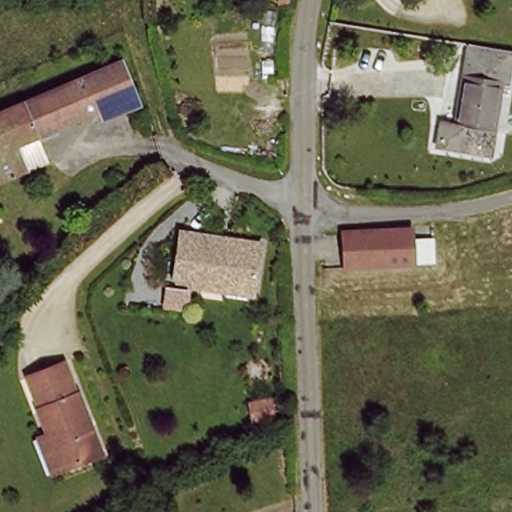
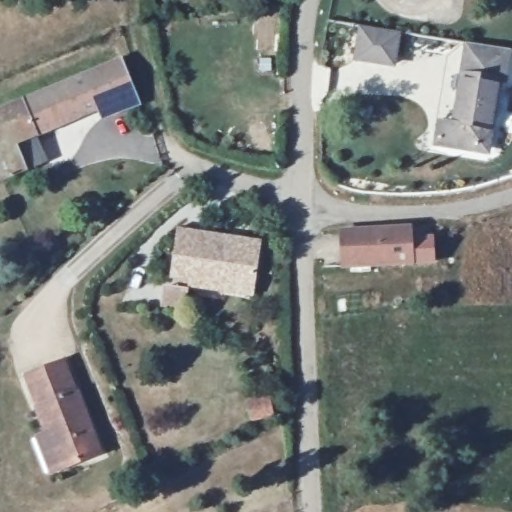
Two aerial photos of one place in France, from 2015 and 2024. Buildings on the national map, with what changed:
new [(357,24),(402,32),(396,69),(350,61),(357,24)]
unchanged [(120,60),(142,118),(115,129),(103,104),(8,144),(17,172),(0,178),(0,110),(20,102),(22,101),(120,60)]
new [(313,63),(331,67),(326,107),(311,109),(313,63)]
unchanged [(491,127),(452,120),(463,70),(501,77),(491,127)]
unchanged [(343,226),(406,221),(409,258),(344,263),(343,226)]
unchanged [(196,295),(196,290),(176,288),(176,243),(257,243),(256,285),(256,295),(196,295)]
unchanged [(35,440),(48,432),(21,379),(57,362),(102,448),(75,462),(65,467),(50,472),(35,440)]

